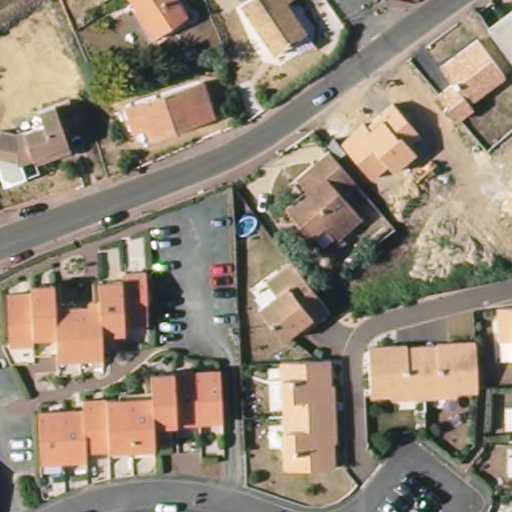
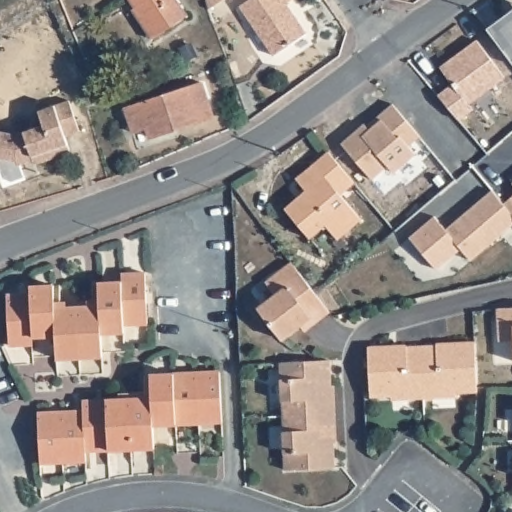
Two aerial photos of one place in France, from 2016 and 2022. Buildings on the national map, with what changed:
unchanged [(133,10),(141,4),(137,0),(182,0),(192,14),(162,36),(154,40),(133,10)]
new [(209,8),(206,0),(220,0),(209,8)]
unchanged [(288,3),(310,33),(278,55),(242,5),(249,0),(292,0),(288,3)]
unchanged [(512,63),(511,61),(497,44),(493,40),(512,24),(512,63)]
unchanged [(504,77),(470,102),(473,109),(455,120),(438,95),(451,84),(440,67),(477,40),(504,77)]
unchanged [(147,128),(132,133),(124,109),(202,83),(215,117),(150,139),(147,128)]
unchanged [(35,156),(20,161),(18,158),(0,155),(0,128),(14,130),(42,119),(37,105),(67,94),(79,124),(65,130),(71,145),(42,156),(36,158),(35,156)]
unchanged [(422,135),(409,145),(416,156),(392,175),(387,167),(371,179),(341,142),(365,120),(367,123),(395,102),(422,135)]
unchanged [(342,192),(360,214),(335,235),(322,220),(307,232),(283,202),(305,185),(297,175),(331,148),(357,180),(342,192)]
new [(461,247),(438,268),(411,236),(435,217),(444,228),(491,190),(504,204),(512,213),(512,225),(471,260),(461,247)]
unchanged [(512,197),(512,213),(504,204),(512,197)]
unchanged [(275,297),(265,283),(292,262),(331,312),(317,320),(283,342),(259,310),(275,297)]
unchanged [(57,335),(36,336),(36,342),(12,344),(10,295),(32,294),(31,285),(55,284),(57,306),(102,303),(101,282),(124,280),(124,273),(147,271),(150,323),(127,324),(127,331),(102,332),(102,348),(104,356),(81,358),(59,359),(58,352),(57,335)]
unchanged [(512,341),(500,341),(498,309),(512,309),(512,341)]
unchanged [(392,395),(372,396),(369,347),(407,346),(407,347),(437,345),(476,343),(477,392),(457,393),(457,397),(441,398),(408,399),(392,400),(392,395)]
unchanged [(332,386),(335,385),(337,442),(334,442),(335,467),(286,469),(282,362),(331,360),(332,386)]
unchanged [(87,461),(46,464),(43,413),(85,411),(85,400),(156,395),(154,375),(224,371),(225,410),(226,418),(204,419),(180,421),(157,424),(157,439),(159,447),(134,449),(111,450),(87,452),(87,461)]

